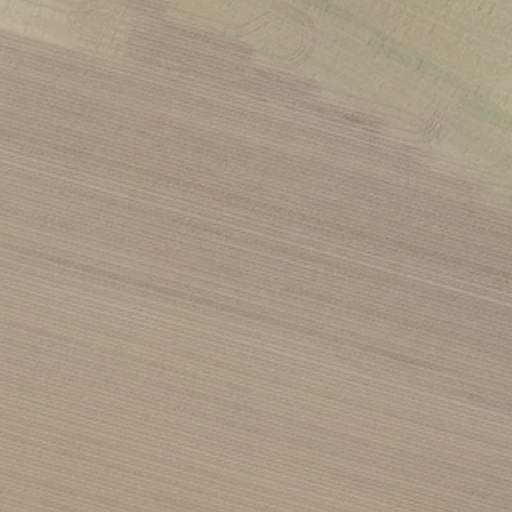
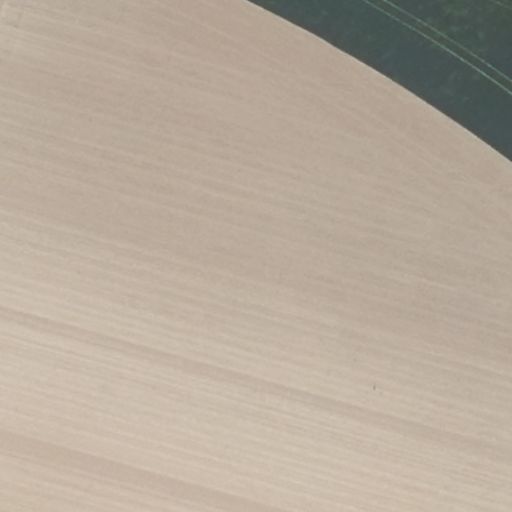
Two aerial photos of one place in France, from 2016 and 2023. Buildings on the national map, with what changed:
[]

